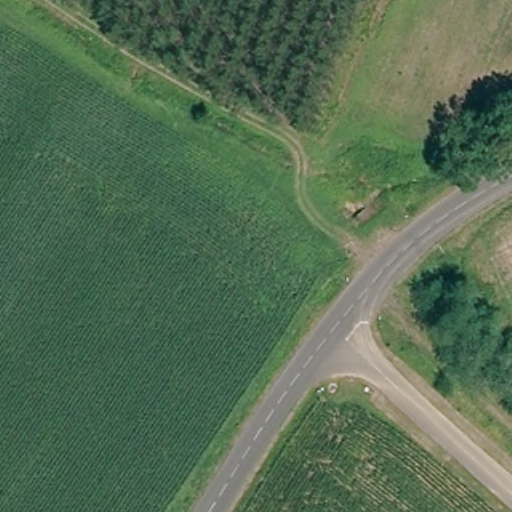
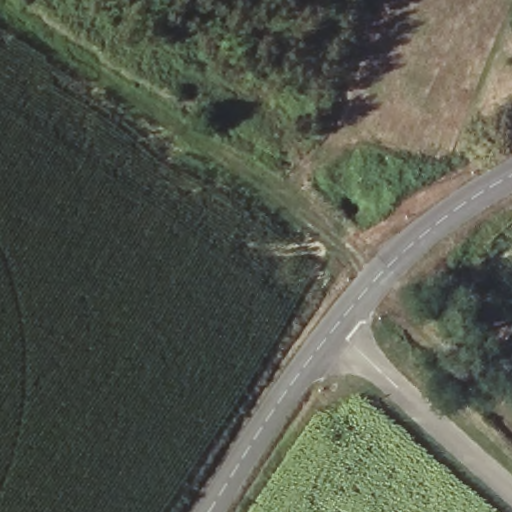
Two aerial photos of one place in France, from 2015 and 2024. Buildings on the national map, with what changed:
[]

